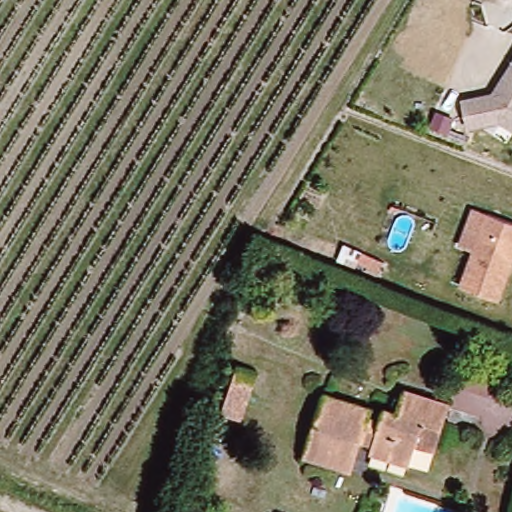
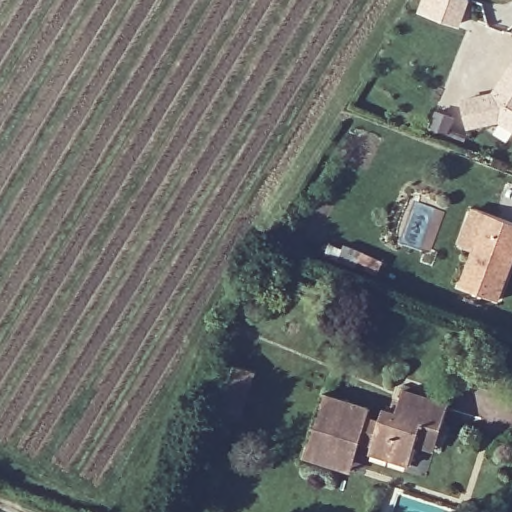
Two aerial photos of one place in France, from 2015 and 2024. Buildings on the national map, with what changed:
new [(418,13),(423,0),(470,0),(460,27),(418,13)]
unchanged [(471,130),(464,103),(496,95),(512,69),(512,129),(501,123),(471,130)]
unchanged [(512,218),(512,274),(503,299),(465,286),(491,211),(512,218)]
unchanged [(255,351),(238,395),(221,389),(238,345),(255,351)]
unchanged [(321,398),(365,414),(363,421),(378,426),(384,407),(395,410),(404,388),(444,403),(433,430),(421,425),(404,468),(373,456),(374,451),(354,443),(343,471),(300,456),(321,398)]

